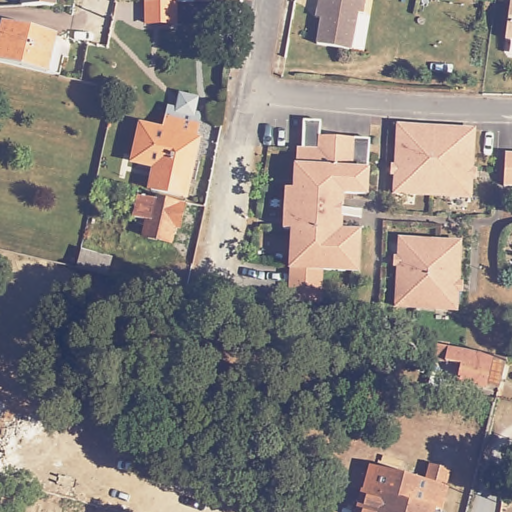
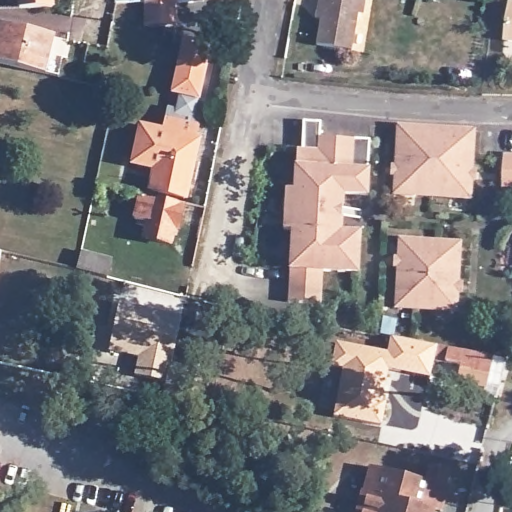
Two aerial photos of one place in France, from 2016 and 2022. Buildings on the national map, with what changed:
unchanged [(51,0),(51,5),(31,5),(16,6),(16,0),(51,0)]
unchanged [(144,0),(173,0),(173,10),(144,9),(144,0)]
unchanged [(242,0),(242,3),(215,3),(195,2),(195,0),(242,0)]
unchanged [(358,12),(353,48),(319,43),(323,19),(318,18),(321,5),(322,0),(367,0),(365,13),(358,12)]
unchanged [(506,0),(512,0),(512,40),(501,39),(506,0)]
unchanged [(53,36),(47,73),(0,64),(0,25),(53,36)]
unchanged [(156,172),(133,167),(142,130),(165,136),(170,113),(200,120),(195,144),(199,145),(185,203),(150,195),(156,172)]
unchanged [(306,146),(308,117),(326,119),(325,131),(374,135),(373,191),(349,190),(347,228),(365,228),(363,269),(330,268),(328,302),(294,300),(296,265),(298,228),(287,228),(289,186),(299,186),(300,165),(301,146),(306,146)]
unchanged [(466,193),(443,192),(443,187),(414,186),(413,190),(391,189),(393,120),(417,121),(445,123),(468,124),(466,193)]
unchanged [(512,185),(505,184),(506,151),(512,151),(512,185)]
unchanged [(179,233),(174,232),(171,248),(144,242),(147,225),(152,226),(157,201),(184,207),(179,233)]
unchanged [(419,241),(418,246),(433,247),(434,242),(456,243),(453,312),(431,311),(431,305),(417,305),(416,310),(394,308),(397,240),(419,241)]
unchanged [(111,260),(106,276),(75,267),(80,250),(111,260)]
new [(137,357),(105,349),(116,301),(181,314),(172,362),(197,367),(193,386),(133,375),(137,357)]
new [(432,361),(430,377),(387,369),(382,399),(386,401),(381,425),(333,415),(342,367),(330,365),(334,341),(385,350),(389,335),(434,346),(454,353),(453,364),(432,361)]
unchanged [(502,391),(474,386),(477,371),(462,369),(463,366),(453,364),(454,353),(470,356),(507,361),(502,391)]
demolished [(445,380),(443,389),(428,386),(430,377),(445,380)]
new [(443,389),(428,386),(430,377),(445,380),(443,389)]
new [(427,464),(451,469),(446,485),(424,480),(427,464)]
unchanged [(361,489),(363,490),(370,465),(450,486),(443,511),(436,509),(436,512),(356,512),(361,489)]

